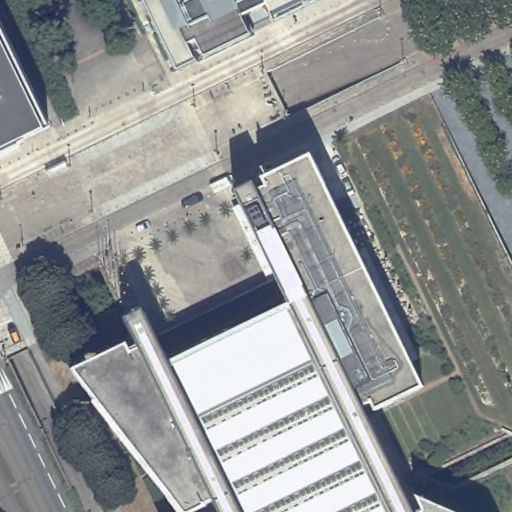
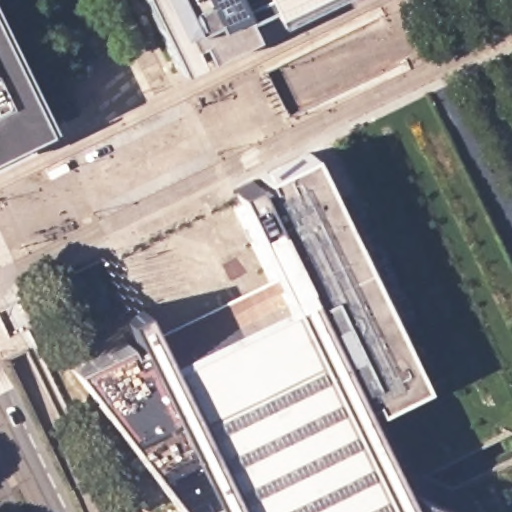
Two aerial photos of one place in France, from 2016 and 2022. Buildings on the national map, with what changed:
unchanged [(158,39),(139,0),(327,0),(175,74),(158,39)]
unchanged [(16,142),(18,145),(0,154),(0,31),(46,127),(16,142)]
unchanged [(251,183),(255,190),(263,187),(260,179),(296,161),(307,155),(355,254),(408,365),(419,389),(373,412),(369,403),(359,408),(364,416),(351,422),(287,291),(260,235),(247,208),(238,189),(251,183)]
unchanged [(408,365),(355,254),(364,249),(409,344),(418,361),(415,362),(408,365)]
unchanged [(418,512),(222,512),(216,499),(208,503),(209,504),(193,512),(187,512),(75,368),(130,341),(134,350),(141,347),(127,316),(146,307),(166,349),(287,291),(351,422),(364,416),(370,413),(418,512)]
unchanged [(428,509),(422,497),(457,512),(422,512),(428,509)]

